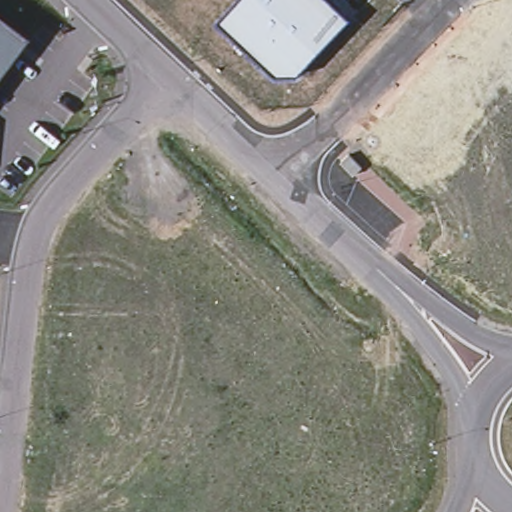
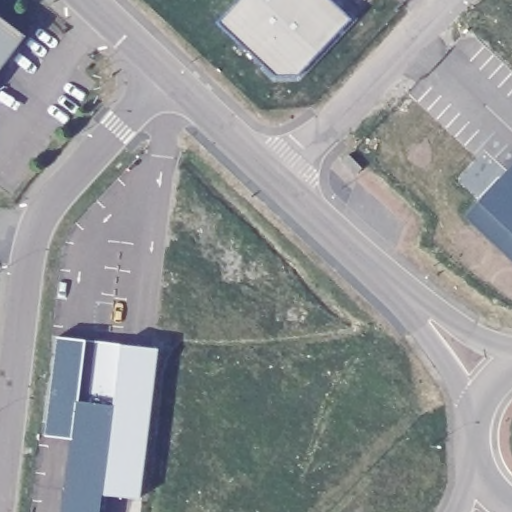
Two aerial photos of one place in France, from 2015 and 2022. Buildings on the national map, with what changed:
unchanged [(220,21),(239,0),(330,0),(351,20),(298,75),(277,75),(220,21)]
unchanged [(0,69),(0,19),(25,37),(0,69)]
new [(477,200),(512,163),(512,232),(479,201),(477,200)]
new [(465,215),(479,200),(512,232),(512,260),(465,215)]
new [(157,347),(140,497),(102,492),(100,512),(63,512),(76,400),(91,401),(97,341),(157,347)]

